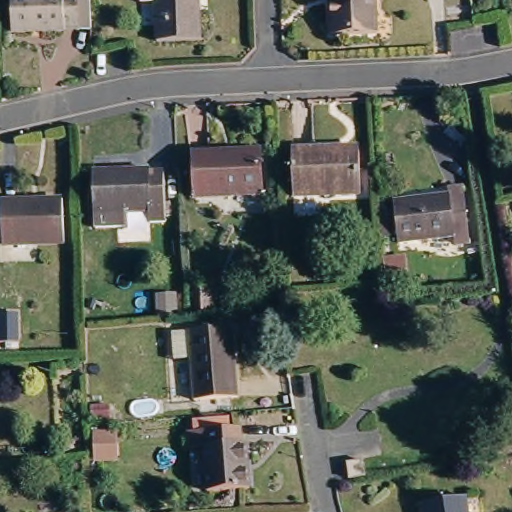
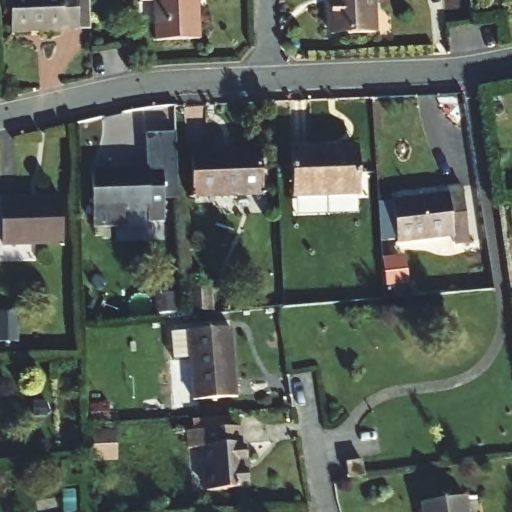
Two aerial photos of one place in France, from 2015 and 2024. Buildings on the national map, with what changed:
unchanged [(11,0),(75,0),(77,22),(62,25),(63,34),(15,40),(11,0)]
unchanged [(154,10),(140,10),(139,0),(197,0),(197,40),(155,41),(154,10)]
unchanged [(374,31),(332,35),(328,0),(373,0),(374,31)]
unchanged [(357,192),(292,192),(292,143),(310,142),(312,150),(355,149),(357,192)]
unchanged [(262,195),(195,198),(194,154),(260,154),(262,195)]
unchanged [(90,228),(89,210),(87,165),(142,166),(143,213),(117,211),(118,227),(90,228)]
unchanged [(158,167),(162,224),(142,224),(143,213),(142,166),(158,167)]
unchanged [(465,249),(448,247),(447,240),(393,240),(392,196),(445,198),(445,189),(463,189),(465,249)]
unchanged [(63,244),(2,245),(0,201),(62,200),(63,244)]
unchanged [(242,389),(199,395),(195,360),(177,360),(174,331),(191,330),(237,324),(242,389)]
unchanged [(233,425),(235,440),(238,440),(242,485),(207,488),(200,444),(193,443),(192,428),(233,425)]
unchanged [(347,483),(344,458),(365,455),(370,479),(347,483)]
unchanged [(470,512),(427,512),(425,505),(468,497),(470,512)]

